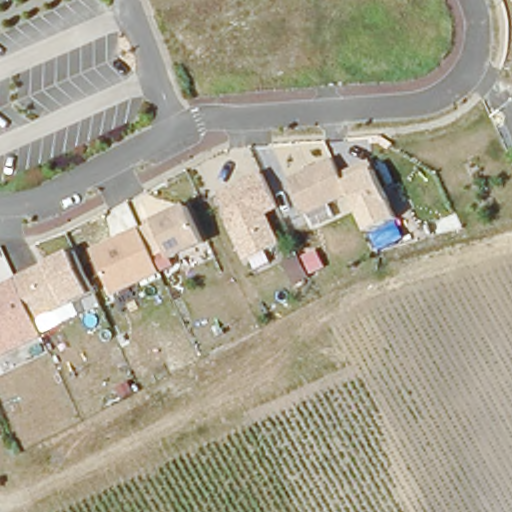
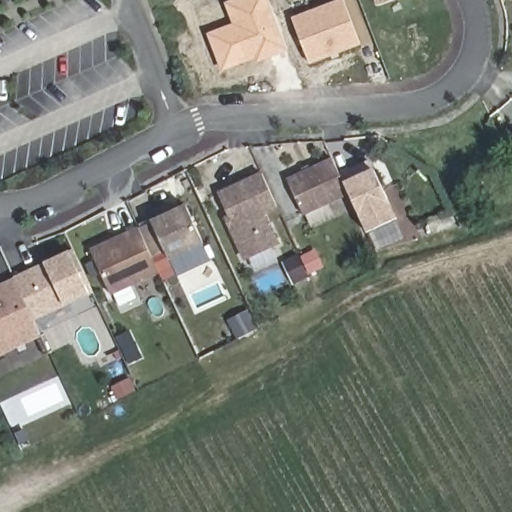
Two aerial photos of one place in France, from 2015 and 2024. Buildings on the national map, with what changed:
new [(233,23),(226,3),(235,0),(269,0),(288,51),(259,62),(257,58),(222,71),(207,33),(233,23)]
new [(338,0),(341,0),(359,46),(310,65),(291,18),(338,0)]
new [(375,7),(372,0),(394,0),(375,7)]
unchanged [(400,219),(369,234),(350,196),(303,217),(287,180),(334,159),(341,174),(368,162),(400,219)]
unchanged [(277,208),(267,214),(281,244),(244,261),(223,216),(232,212),(221,191),(259,172),(277,208)]
unchanged [(207,246),(172,262),(167,251),(153,258),(160,273),(112,296),(92,251),(155,225),(153,220),(185,203),(207,246)]
unchanged [(93,292),(34,321),(43,338),(0,358),(0,284),(74,251),(93,292)]

